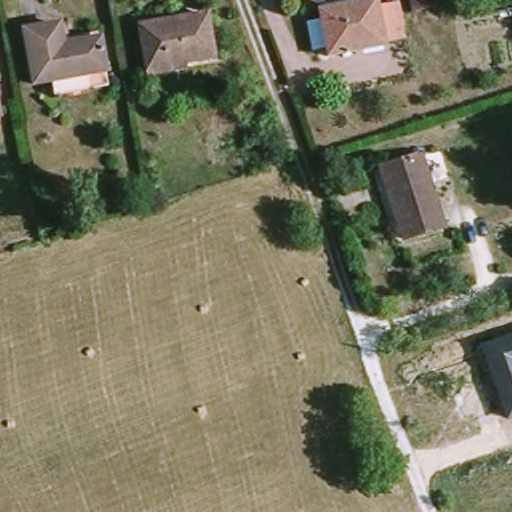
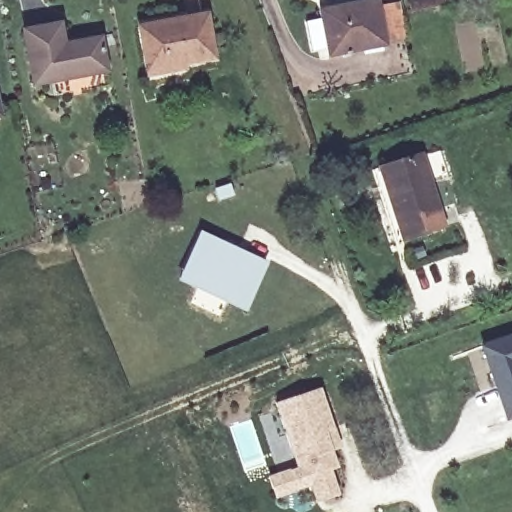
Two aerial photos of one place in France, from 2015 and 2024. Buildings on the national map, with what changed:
unchanged [(336,14),(335,6),(359,0),(393,0),(402,36),(346,51),(344,44),(335,46),(327,17),(336,14)]
unchanged [(147,27),(195,16),(196,22),(216,18),(225,56),(157,72),(147,27)]
unchanged [(38,26),(71,18),(76,40),(114,32),(121,65),(50,81),(38,26)]
unchanged [(0,115),(0,74),(9,112),(0,115)]
unchanged [(390,166),(430,153),(455,224),(414,239),(390,166)]
new [(199,228),(270,260),(245,311),(175,279),(199,228)]
unchanged [(512,335),(512,420),(507,421),(480,346),(512,335)]
new [(295,465),(274,402),(320,386),(343,447),(333,450),(340,468),(332,470),(340,494),(315,503),(308,487),(275,499),(266,475),(295,465)]

